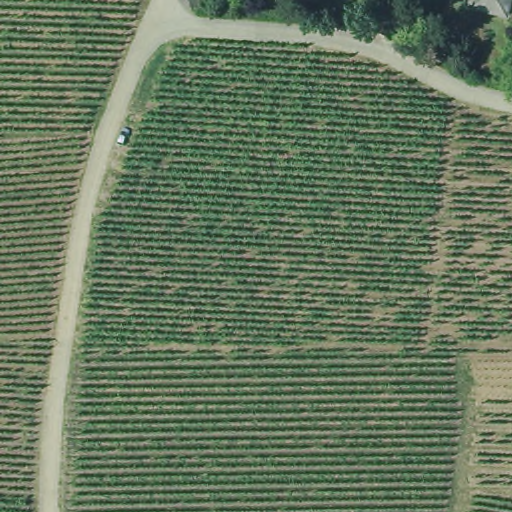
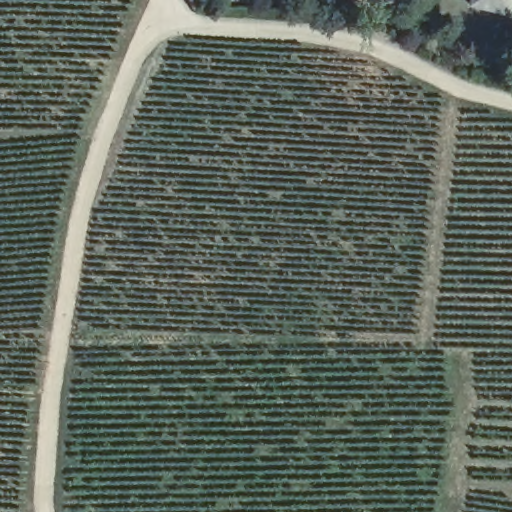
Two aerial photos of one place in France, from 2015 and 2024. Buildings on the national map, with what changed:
unchanged [(502,10),(467,1),(467,0),(505,0),(502,10)]

